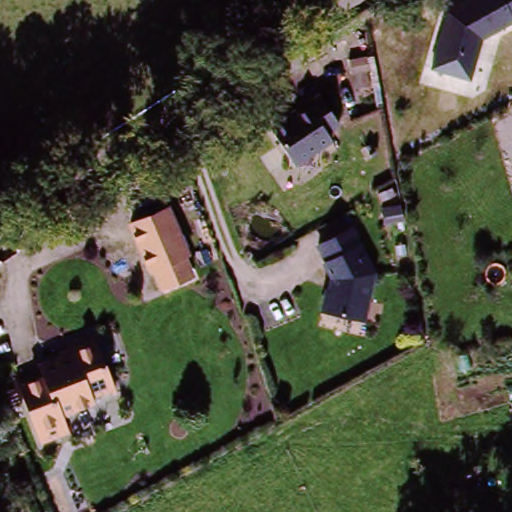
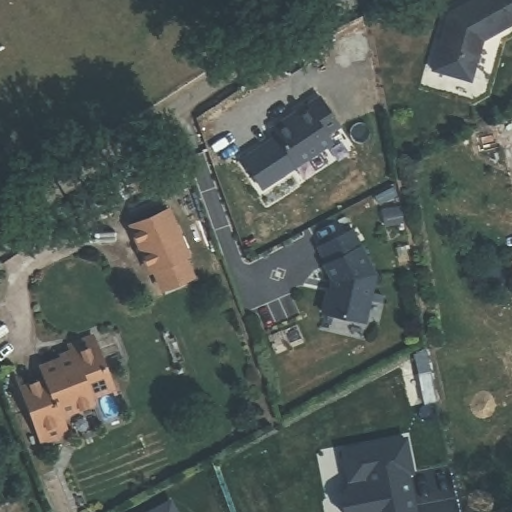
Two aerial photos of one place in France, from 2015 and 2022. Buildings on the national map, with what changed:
unchanged [(445,11),(466,0),(512,0),(512,27),(482,43),(472,82),(428,70),(445,11)]
unchanged [(322,96),(343,126),(333,135),(335,140),(303,168),(276,128),(322,96)]
unchanged [(177,207),(197,255),(194,257),(202,276),(162,291),(132,222),(177,207)]
unchanged [(357,228),(380,273),(367,322),(327,313),(336,279),(324,242),(357,228)]
unchanged [(47,374),(44,363),(80,348),(81,342),(99,336),(113,388),(97,396),(97,410),(64,417),(71,433),(46,443),(27,385),(47,374)]
new [(412,473),(407,474),(409,486),(405,487),(407,499),(412,498),(415,512),(344,512),(341,494),(349,482),(342,450),(406,437),(412,473)]
new [(145,512),(171,497),(178,512),(145,512)]

